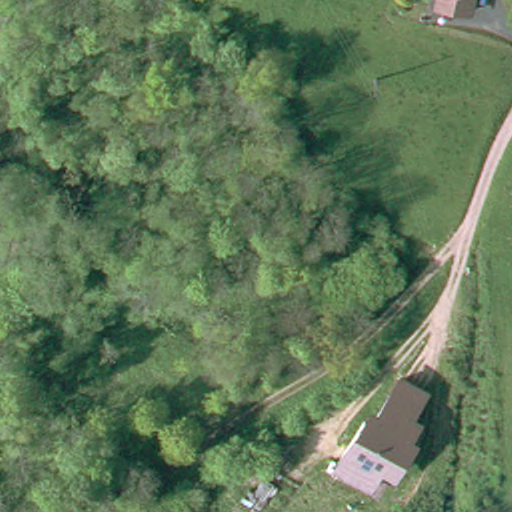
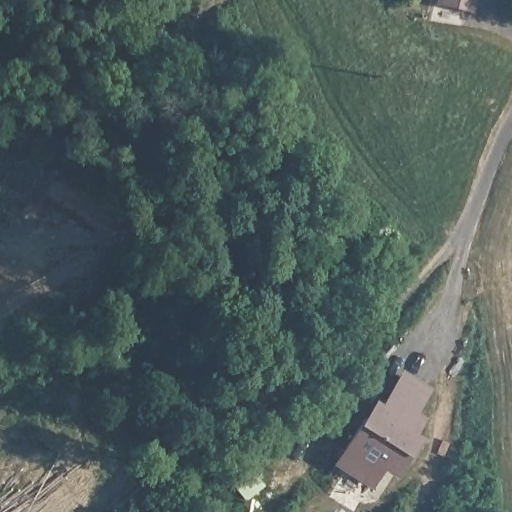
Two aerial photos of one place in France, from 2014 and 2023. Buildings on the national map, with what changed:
unchanged [(459,0),(457,6),(430,0),(459,0)]
unchanged [(420,364),(404,391),(412,397),(402,413),(408,417),(370,477),(323,445),(357,392),(365,396),(395,348),(420,364)]

